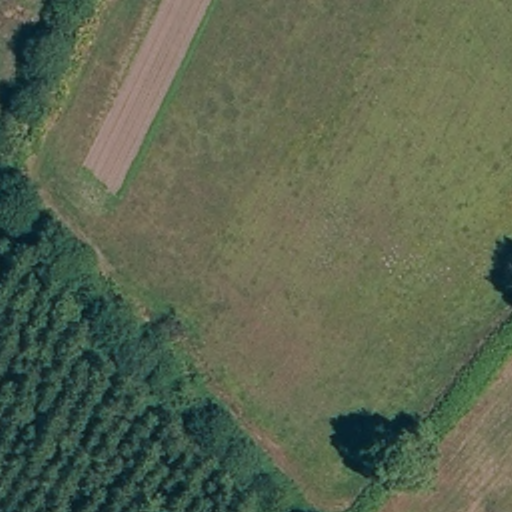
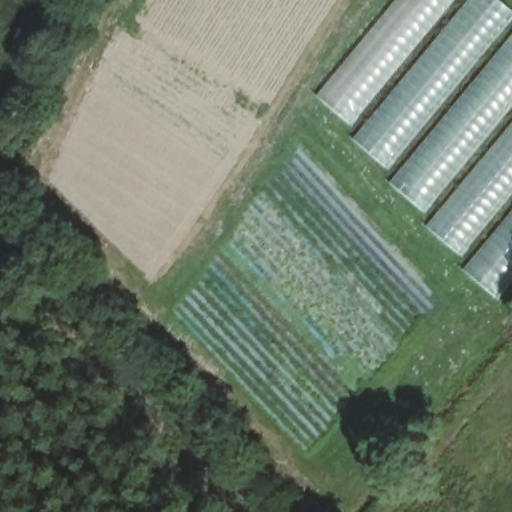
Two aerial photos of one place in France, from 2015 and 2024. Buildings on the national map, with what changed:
new [(466,0),(502,0),(512,9),(512,22),(388,170),(352,140),(466,0)]
new [(512,31),(512,109),(424,213),(388,183),(512,31)]
new [(505,133),(512,124),(512,195),(508,201),(460,256),(425,226),(505,133)]
new [(512,209),(512,280),(496,298),(462,269),(512,209)]

